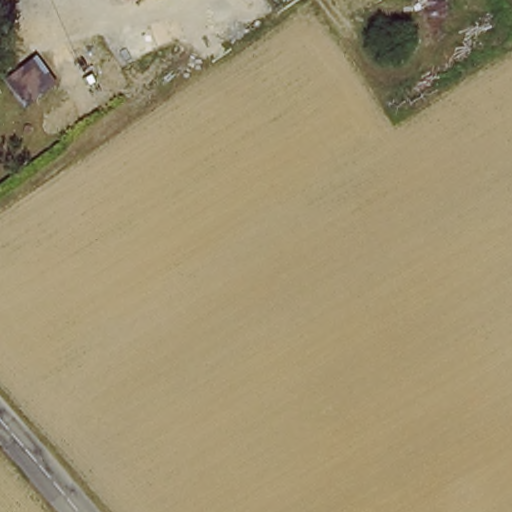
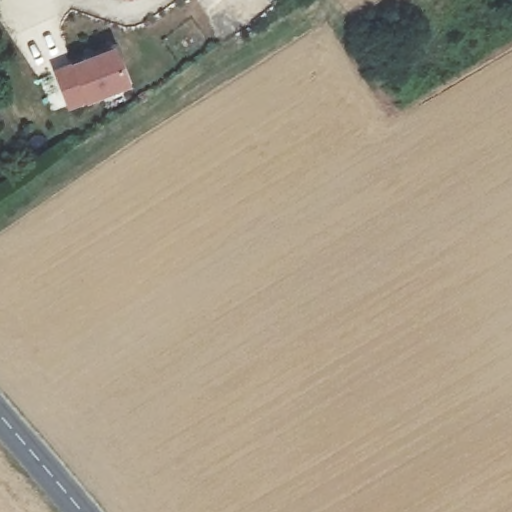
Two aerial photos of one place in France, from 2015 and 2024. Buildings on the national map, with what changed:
new [(111,45),(124,79),(66,101),(53,67),(111,45)]

